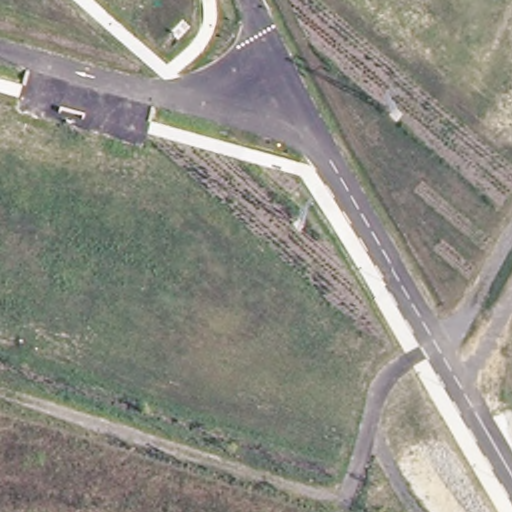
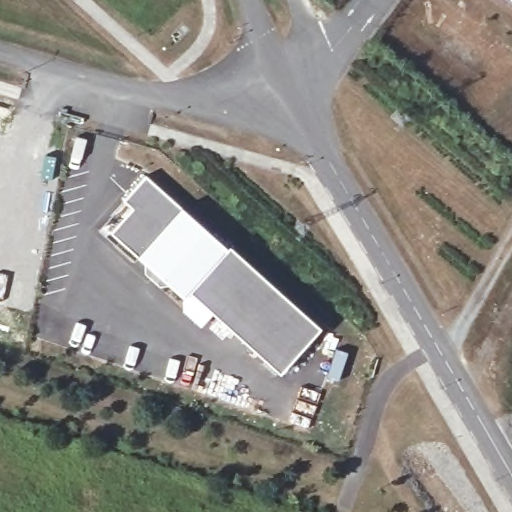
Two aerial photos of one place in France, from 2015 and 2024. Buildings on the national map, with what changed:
new [(180,207),(319,329),(281,372),(189,290),(184,296),(140,255),(111,232),(133,207),(124,201),(143,176),(180,207)]

